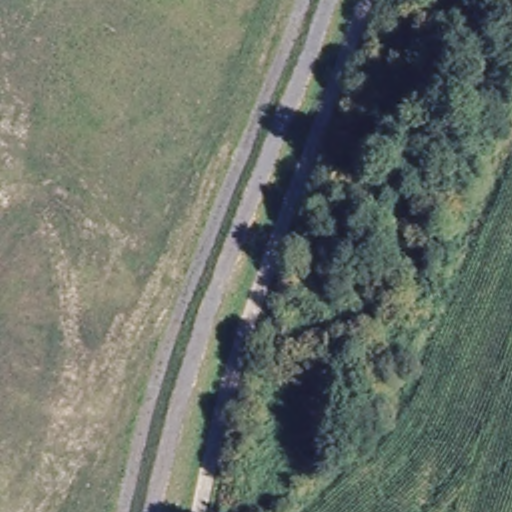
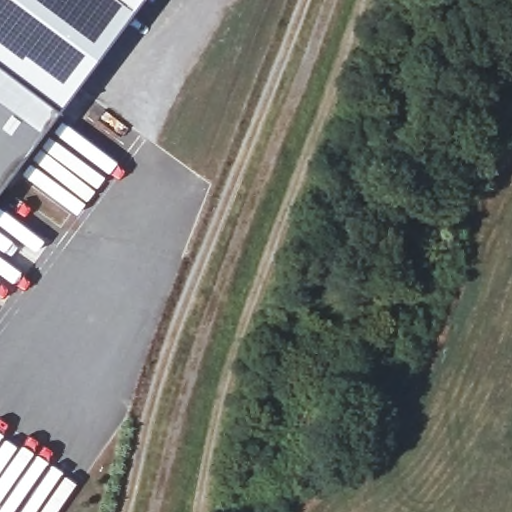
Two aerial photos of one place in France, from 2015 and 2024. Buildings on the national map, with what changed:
new [(0,68),(0,0),(135,0),(54,109),(0,68)]
unchanged [(0,181),(0,68),(54,109),(0,181)]

